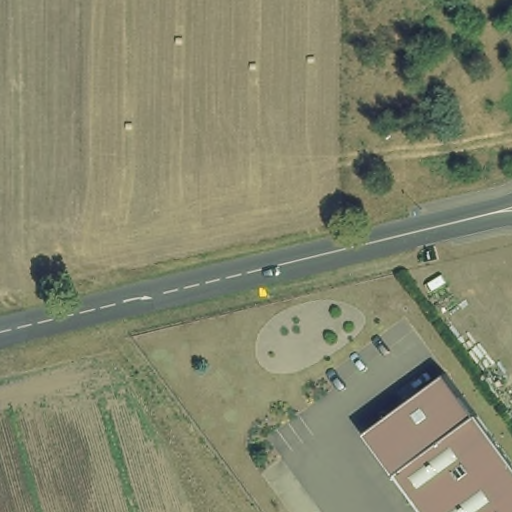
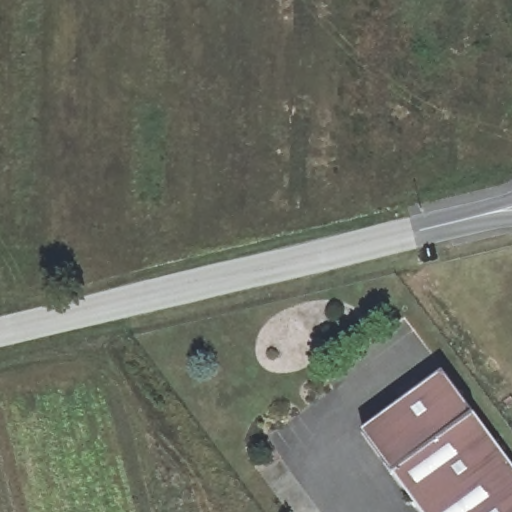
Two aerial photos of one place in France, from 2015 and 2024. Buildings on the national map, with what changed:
unchanged [(361,434),(444,372),(512,464),(512,512),(420,512),(361,434)]

